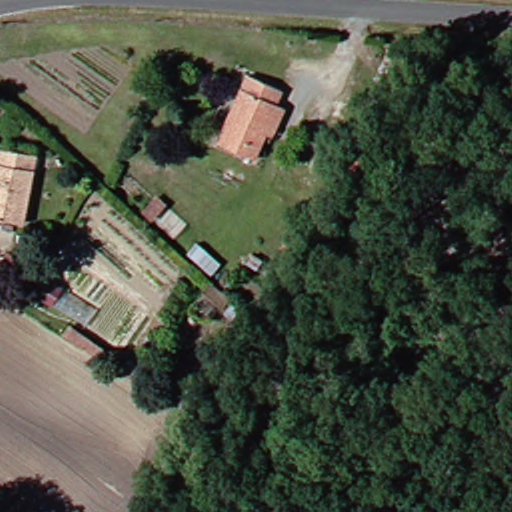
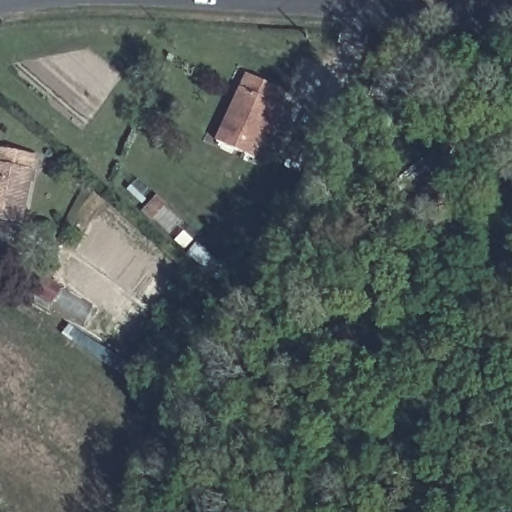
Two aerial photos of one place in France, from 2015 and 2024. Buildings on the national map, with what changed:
unchanged [(262,131),(252,131),(243,156),(206,139),(237,74),(268,89),(264,102),(273,105),(262,131)]
unchanged [(28,154),(14,222),(0,218),(0,149),(28,154)]
unchanged [(206,246),(235,271),(221,283),(195,259),(206,246)]
unchanged [(0,272),(0,269),(10,256),(18,262),(49,285),(40,302),(0,272)]

